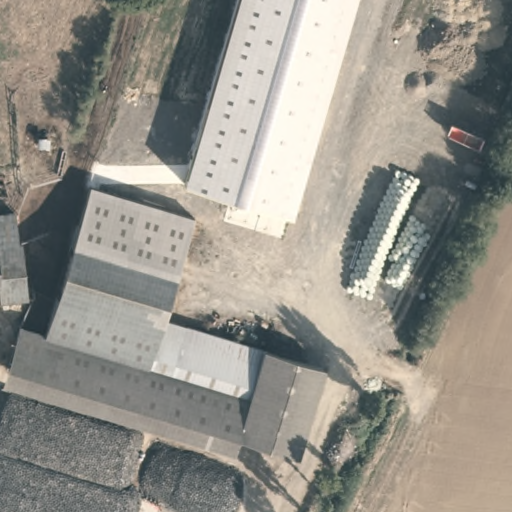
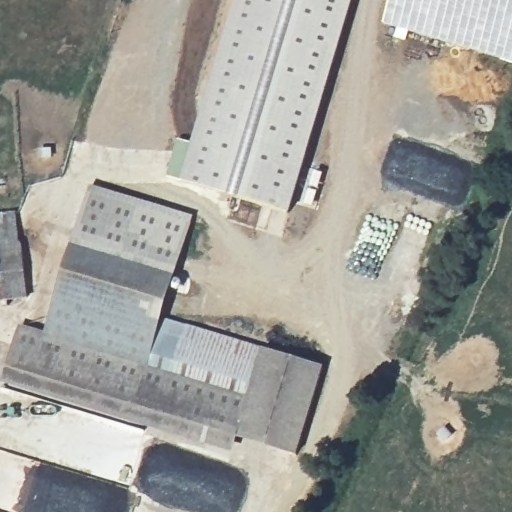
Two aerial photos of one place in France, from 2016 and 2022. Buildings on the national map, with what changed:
unchanged [(290,214),(182,182),(236,0),(354,0),(290,214)]
new [(391,0),(512,0),(512,62),(384,24),(391,0)]
unchanged [(74,246),(91,184),(193,215),(175,277),(74,246)]
unchanged [(22,244),(29,298),(0,300),(0,284),(0,214),(16,212),(20,244),(22,244)]
unchanged [(200,425),(195,441),(3,384),(21,326),(46,333),(74,246),(175,277),(148,367),(171,373),(185,326),(229,340),(200,425)]
unchanged [(171,373),(150,367),(148,367),(162,320),(185,326),(171,373)]
unchanged [(324,368),(297,455),(200,425),(229,340),(324,368)]

